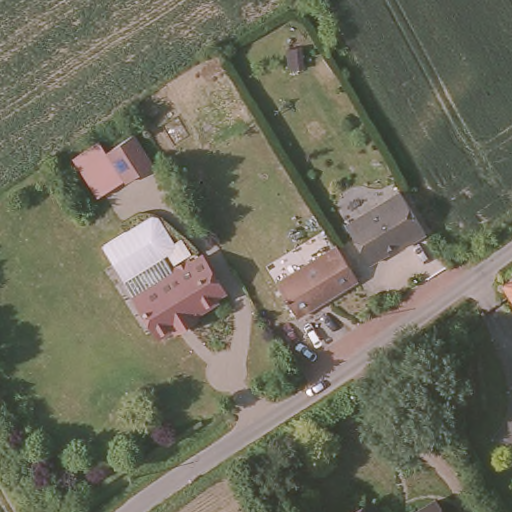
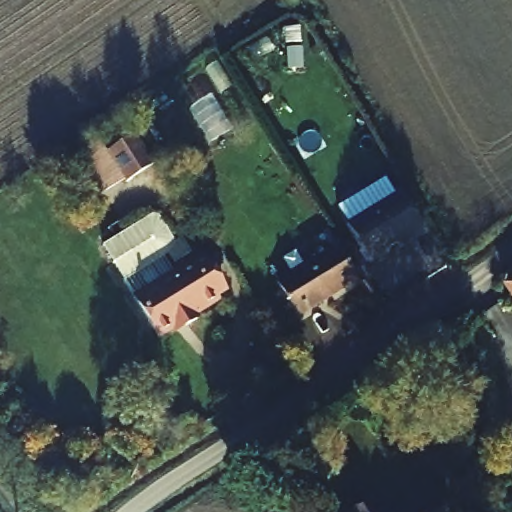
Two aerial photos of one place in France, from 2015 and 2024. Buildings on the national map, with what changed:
unchanged [(125,136),(144,166),(117,182),(100,151),(125,136)]
unchanged [(92,197),(69,158),(95,143),(100,151),(117,182),(92,197)]
unchanged [(405,241),(395,237),(392,240),(391,247),(375,257),(352,217),(402,186),(427,227),(405,241)]
unchanged [(179,252),(127,283),(106,248),(157,217),(179,252)]
unchanged [(295,316),(275,282),(335,245),(355,278),(295,316)]
unchanged [(222,299),(224,302),(200,317),(202,321),(193,327),(190,323),(162,341),(160,337),(145,313),(155,306),(149,294),(183,273),(181,268),(197,259),(203,261),(212,257),(234,291),(222,299)]
unchanged [(512,274),(512,286),(507,277),(512,274)]
unchanged [(447,512),(423,512),(440,502),(447,512)]
unchanged [(389,512),(371,512),(385,504),(389,512)]

